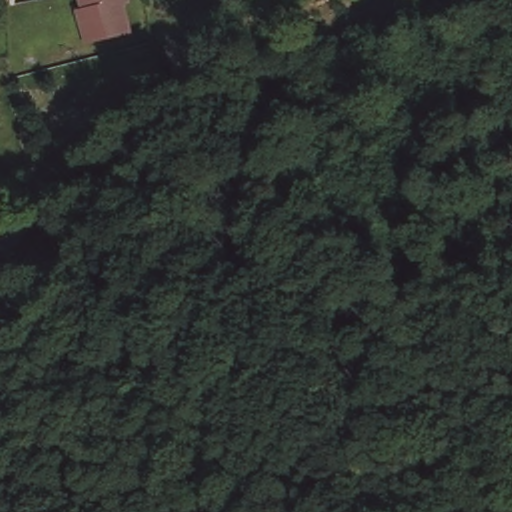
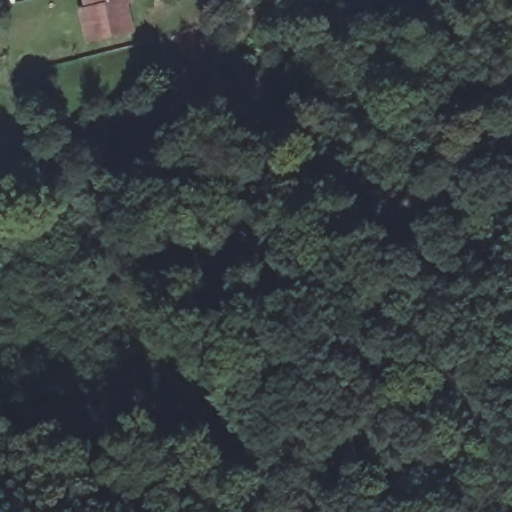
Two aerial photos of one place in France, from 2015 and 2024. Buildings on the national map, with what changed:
unchanged [(90,11),(87,0),(127,0),(136,31),(99,41),(93,43),(85,13),(90,11)]

